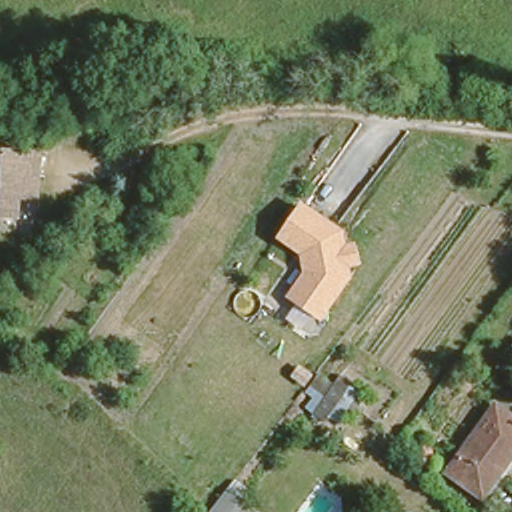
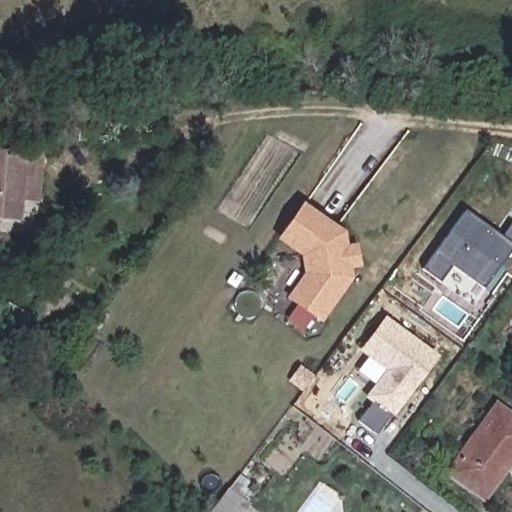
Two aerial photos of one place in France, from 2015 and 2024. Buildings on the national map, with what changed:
unchanged [(16,212),(0,211),(0,146),(36,149),(35,170),(19,168),(19,172),(37,174),(38,200),(18,199),(16,212)]
unchanged [(303,204),(343,231),(346,245),(357,245),(363,270),(353,271),(353,280),(323,323),(313,317),(305,326),(290,317),(295,306),(285,300),(302,274),(298,257),(276,240),(303,204)]
new [(465,211),(503,238),(512,225),(512,251),(485,290),(451,268),(440,280),(424,269),(465,211)]
new [(375,435),(357,421),(370,405),(365,398),(384,370),(358,351),(385,316),(440,356),(395,417),(375,435)]
unchanged [(507,465),(488,493),(447,463),(496,396),(512,408),(512,449),(503,461),(507,465)]
unchanged [(204,510),(206,512),(203,512),(204,510)]

